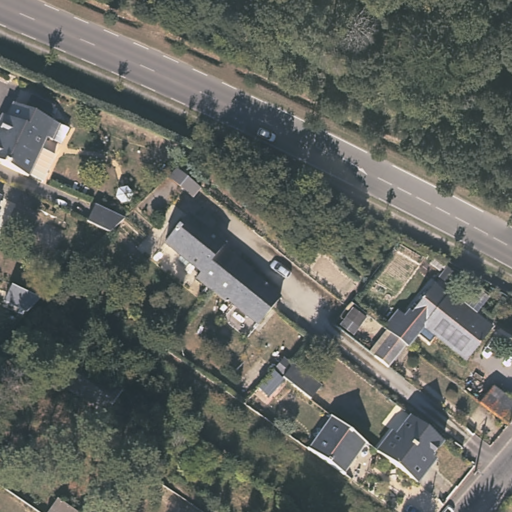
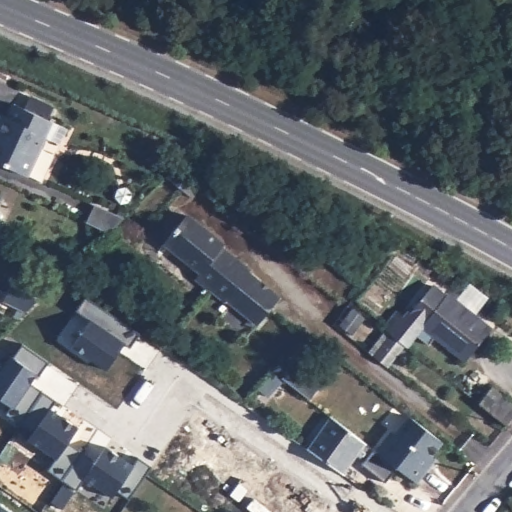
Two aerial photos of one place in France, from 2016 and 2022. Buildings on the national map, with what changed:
unchanged [(59,128),(51,143),(44,139),(26,177),(0,165),(0,121),(1,118),(5,120),(13,105),(59,128)]
unchanged [(3,193),(0,200),(0,191),(3,193)]
unchanged [(127,216),(113,230),(90,219),(98,202),(127,216)]
unchanged [(224,243),(221,245),(251,269),(250,270),(280,295),(260,321),(228,296),(226,299),(197,276),(201,270),(166,240),(186,214),(224,243)]
unchanged [(393,367),(378,355),(392,338),(388,334),(391,330),(390,328),(404,311),(411,316),(414,312),(416,313),(437,287),(451,297),(452,294),(496,329),(471,360),(439,335),(432,343),(420,333),(411,345),(393,367)]
new [(141,331),(130,348),(125,344),(107,370),(92,358),(90,363),(57,340),(87,295),(134,327),(141,331)]
unchanged [(351,313),(361,320),(353,330),(344,323),(351,313)]
new [(129,498),(116,487),(111,496),(85,477),(77,488),(20,451),(33,432),(22,424),(17,428),(0,416),(0,371),(11,355),(14,357),(23,343),(49,362),(39,377),(36,375),(32,382),(45,392),(46,390),(58,400),(51,408),(80,427),(70,442),(82,451),(97,460),(106,446),(134,465),(140,457),(152,465),(129,498)]
demolished [(123,389),(105,415),(64,386),(69,379),(81,361),(123,389)]
unchanged [(331,383),(321,396),(319,395),(293,375),(303,361),(331,383)]
unchanged [(282,367),(290,372),(279,387),(272,381),(282,367)]
unchanged [(512,422),(511,423),(483,400),(495,385),(512,399),(512,422)]
unchanged [(366,444),(343,474),(308,450),(332,417),(366,444)]
unchanged [(418,483),(376,452),(390,434),(394,437),(409,417),(442,443),(424,467),(428,470),(418,483)]
demolished [(59,512),(68,499),(88,512),(59,512)]
new [(0,501),(17,512),(0,512),(0,501)]

